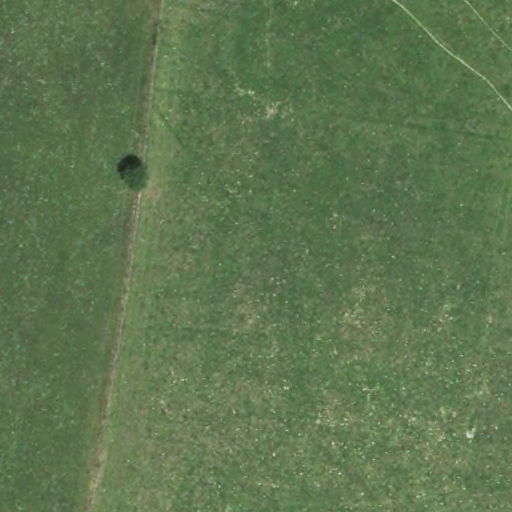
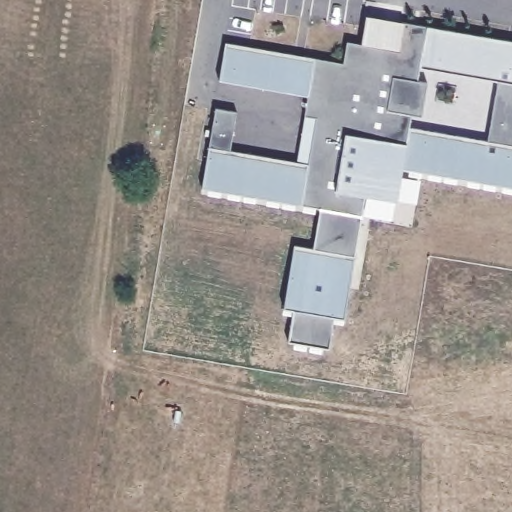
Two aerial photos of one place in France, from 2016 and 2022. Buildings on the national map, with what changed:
new [(330,346),(290,339),(295,309),(285,307),(295,245),(316,249),(322,207),(203,187),(216,108),(238,112),(232,151),(298,162),(309,94),(221,79),(227,42),(343,63),(348,41),(363,44),(368,16),(404,22),(512,41),(512,187),(403,168),(402,176),(421,181),(418,204),(397,200),(397,202),(395,202),(393,221),(362,216),(368,228),(346,316),(333,315),(330,346)]

